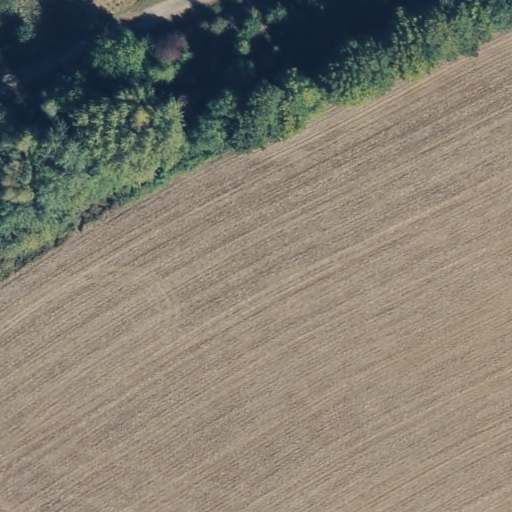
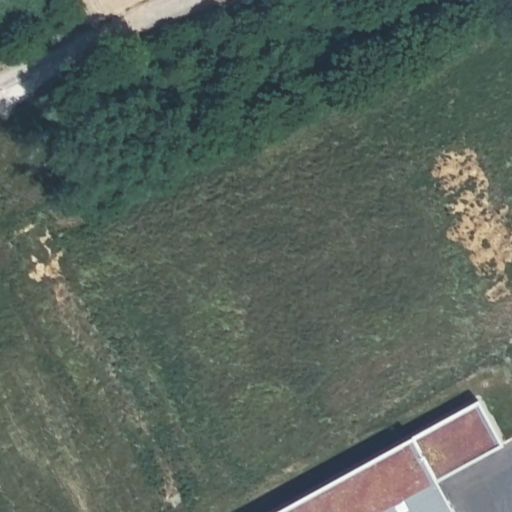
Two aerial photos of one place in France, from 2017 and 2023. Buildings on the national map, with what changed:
new [(480,397),(504,442),(438,478),(456,512),(269,512),(480,397)]

